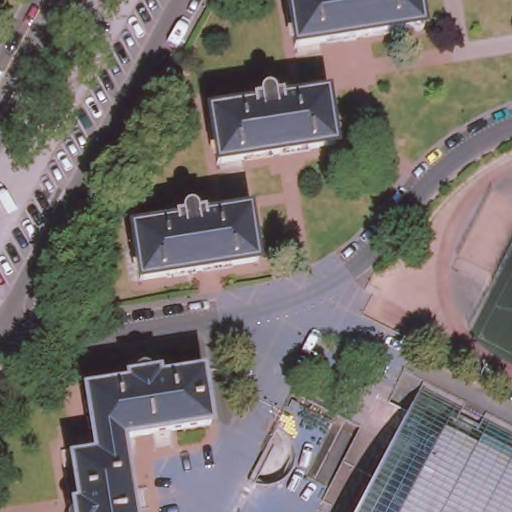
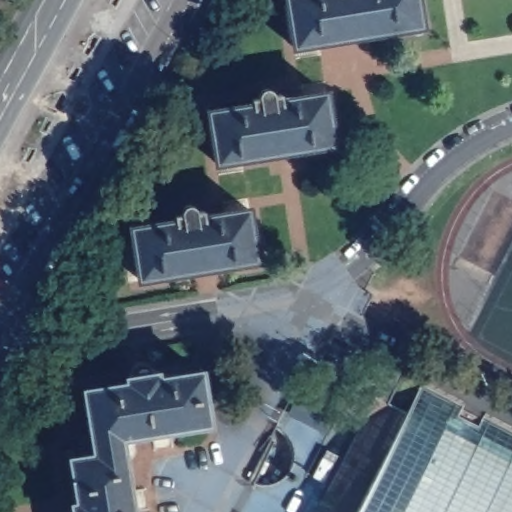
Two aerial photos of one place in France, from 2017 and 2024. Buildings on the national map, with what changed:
unchanged [(293,41),(286,0),(418,0),(421,20),(293,41)]
unchanged [(334,143),(216,161),(208,109),(251,102),(251,97),(257,96),(258,92),(259,89),(262,87),(266,87),(269,88),(272,90),(274,94),(281,93),(281,97),(325,91),(334,143)]
unchanged [(256,259),(138,278),(130,226),(174,219),(174,213),(181,212),(181,209),(183,206),(187,204),(191,205),(194,207),(196,210),(202,209),(203,214),(247,207),(256,259)]
unchanged [(128,383),(128,377),(128,376),(133,376),(134,372),(136,369),(140,367),(144,367),(148,370),(149,373),(154,373),(156,372),(156,378),(164,377),(201,371),(208,423),(121,437),(93,442),(90,428),(84,389),(128,383)]
unchanged [(462,402),(457,412),(477,422),(482,412),(512,428),(512,512),(351,512),(420,380),(462,402)]
unchanged [(73,506),(72,503),(77,502),(75,490),(70,457),(94,453),(93,442),(121,437),(133,512),(69,512),(73,510),(73,506)]

